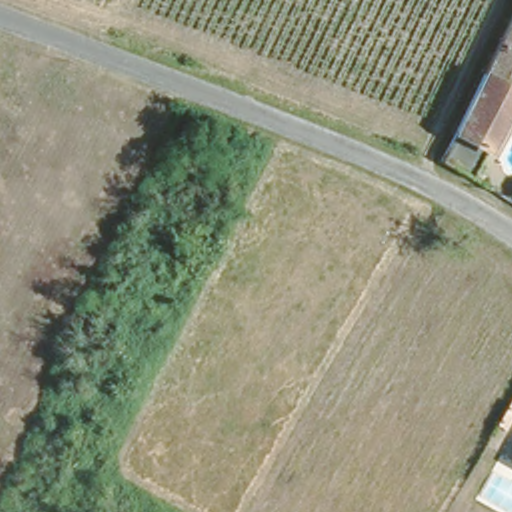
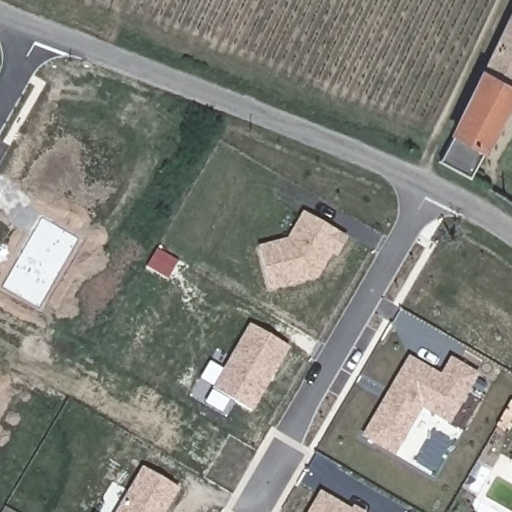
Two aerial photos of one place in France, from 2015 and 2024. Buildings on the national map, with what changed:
unchanged [(473,166),(439,151),(511,0),(512,0),(512,91),(473,166)]
new [(286,240),(303,212),(349,238),(337,258),(331,255),(317,280),(269,292),(257,247),(286,240)]
new [(248,325),(290,349),(252,414),(210,390),(248,325)]
new [(440,375),(450,358),(480,376),(449,427),(421,411),(394,458),(361,439),(408,356),(440,375)]
unchanged [(511,455),(512,453),(512,455),(511,455)]
new [(166,512),(115,512),(140,467),(179,490),(166,512)]
new [(354,512),(307,512),(319,492),(354,512)]

